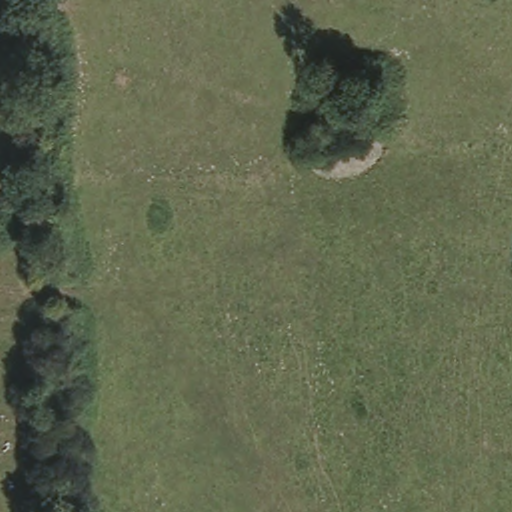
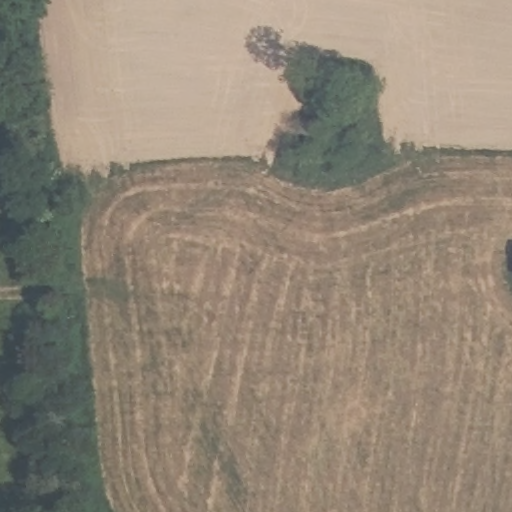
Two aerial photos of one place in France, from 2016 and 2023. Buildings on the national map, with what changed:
[]

